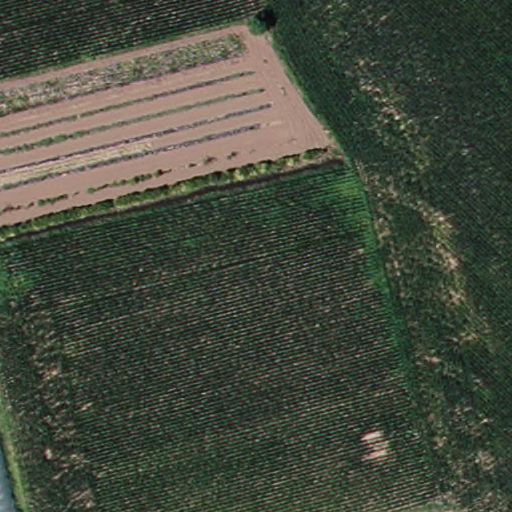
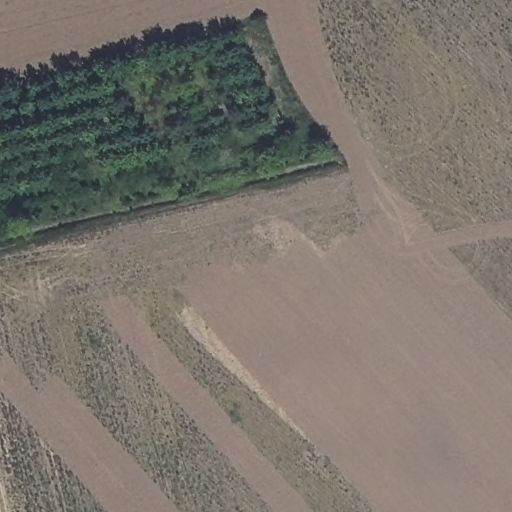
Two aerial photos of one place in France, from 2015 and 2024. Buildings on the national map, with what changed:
unchanged [(0,512),(0,433),(19,512),(0,512)]

